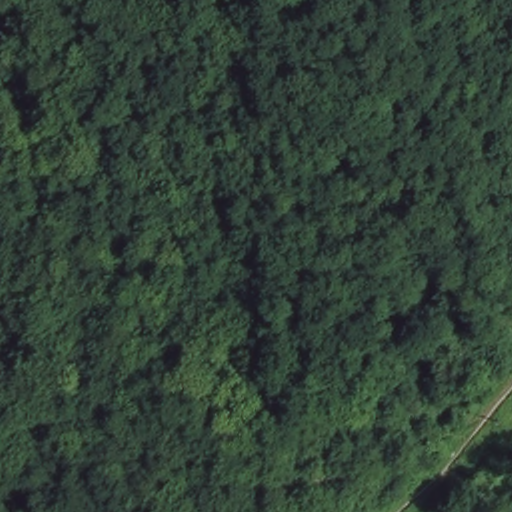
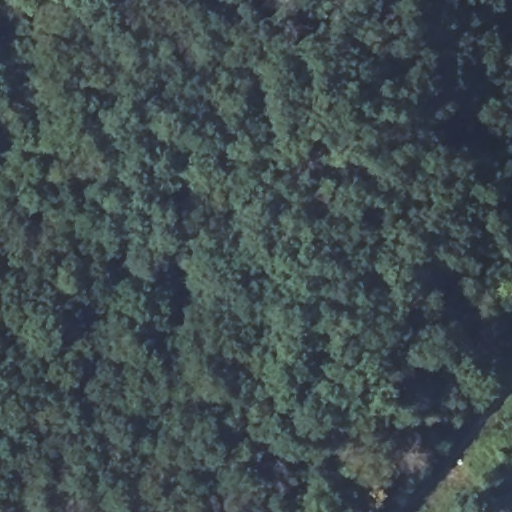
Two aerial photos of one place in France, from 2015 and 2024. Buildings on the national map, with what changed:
[]

